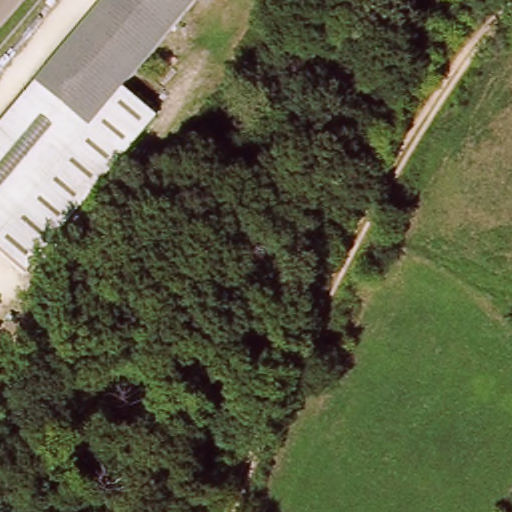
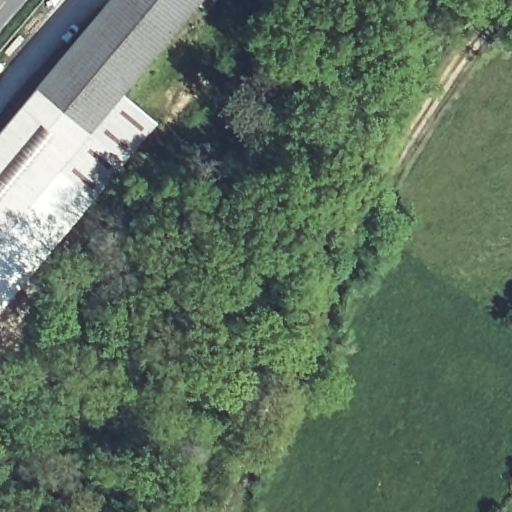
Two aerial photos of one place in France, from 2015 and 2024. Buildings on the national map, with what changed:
unchanged [(130,0),(157,0),(0,186),(0,154),(130,0)]
unchanged [(222,0),(145,92),(79,170),(15,246),(0,233),(0,186),(157,0),(222,0)]
unchanged [(178,121),(114,198),(79,170),(145,92),(178,121)]
unchanged [(50,275),(15,246),(79,170),(114,198),(50,275)]

